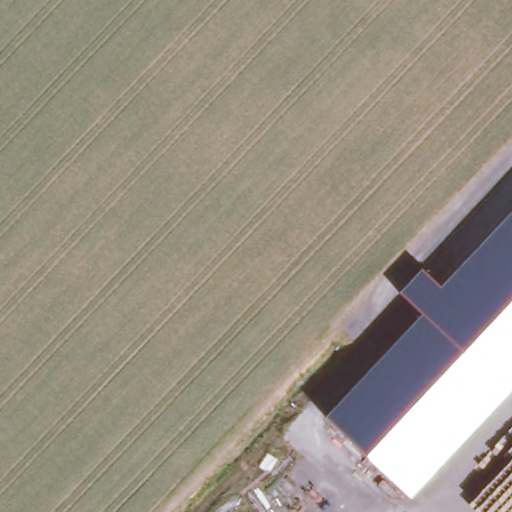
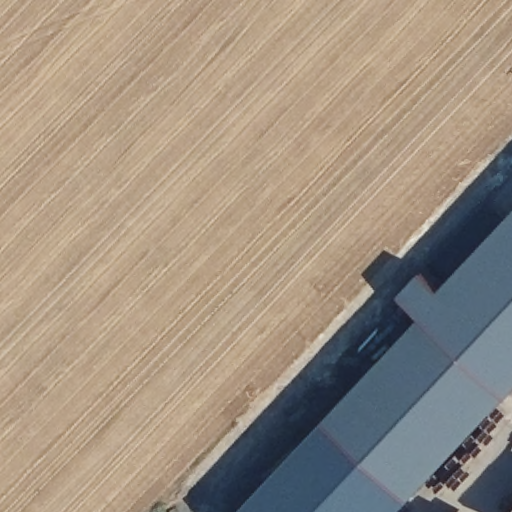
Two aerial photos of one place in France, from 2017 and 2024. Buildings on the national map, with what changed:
unchanged [(512,215),(512,246),(496,231),(512,215)]
unchanged [(326,417),(422,315),(400,295),(424,270),(443,287),(496,231),(512,246),(512,389),(409,497),(326,417)]
new [(395,512),(236,512),(326,417),(409,497),(395,512)]

